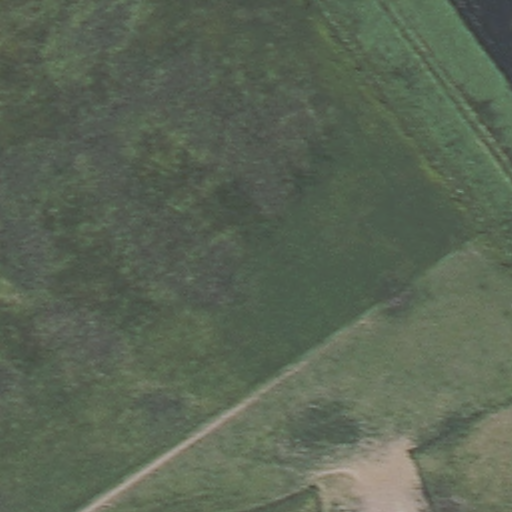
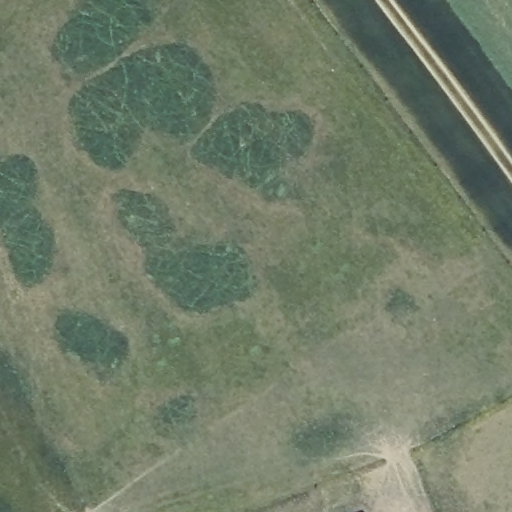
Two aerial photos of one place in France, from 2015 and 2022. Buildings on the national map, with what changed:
[]

